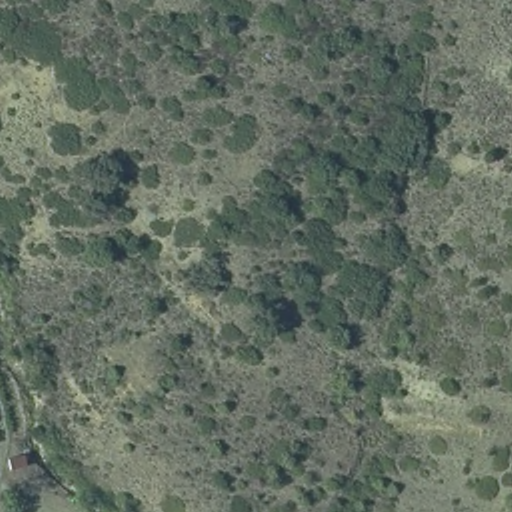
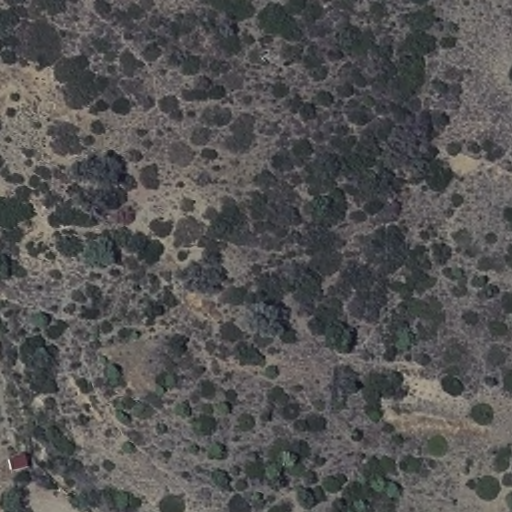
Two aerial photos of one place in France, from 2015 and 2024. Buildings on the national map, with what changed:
unchanged [(30,449),(32,465),(7,466),(6,454),(30,449)]

